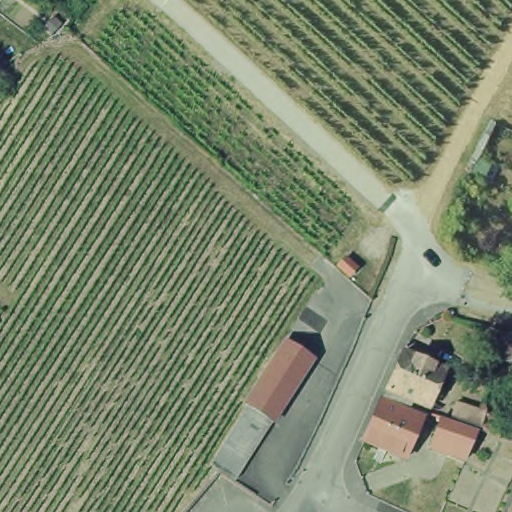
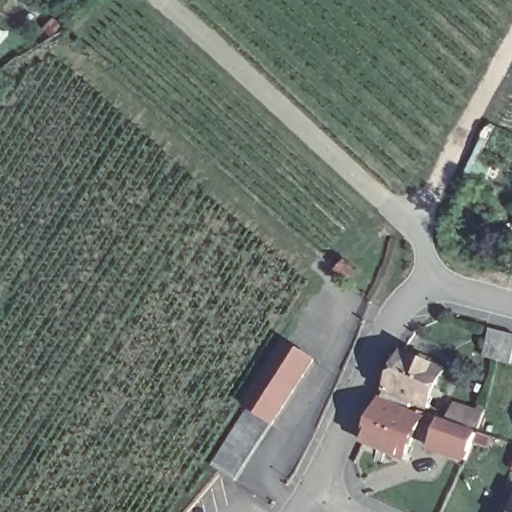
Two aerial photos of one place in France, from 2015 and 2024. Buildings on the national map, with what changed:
unchanged [(349,279),(337,269),(344,261),(355,271),(349,279)]
unchanged [(499,364),(485,361),(491,333),(505,337),(512,339),(512,366),(512,367),(499,364)]
unchanged [(220,451),(230,438),(232,434),(239,423),(247,408),(245,406),(284,343),(310,360),(270,424),(262,437),(255,448),(252,452),(244,466),(235,481),(218,470),(212,466),(220,451)]
unchanged [(378,406),(398,362),(440,380),(424,417),(408,410),(405,416),(378,406)]
unchanged [(377,410),(412,425),(395,466),(359,450),(377,410)]
unchanged [(434,432),(444,435),(451,418),(479,429),(495,435),(490,453),(472,446),(460,475),(423,460),(434,432)]
unchanged [(506,512),(512,500),(512,512),(506,512)]

